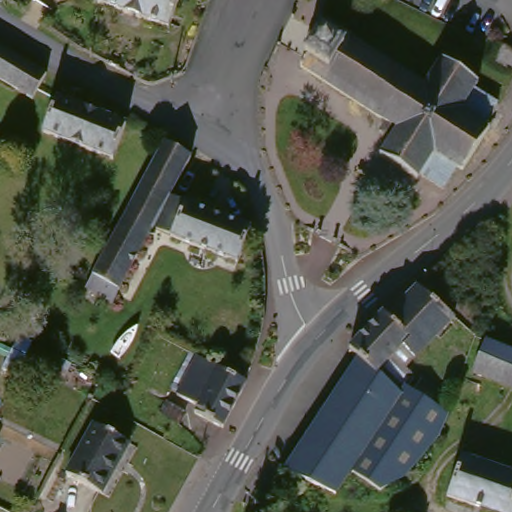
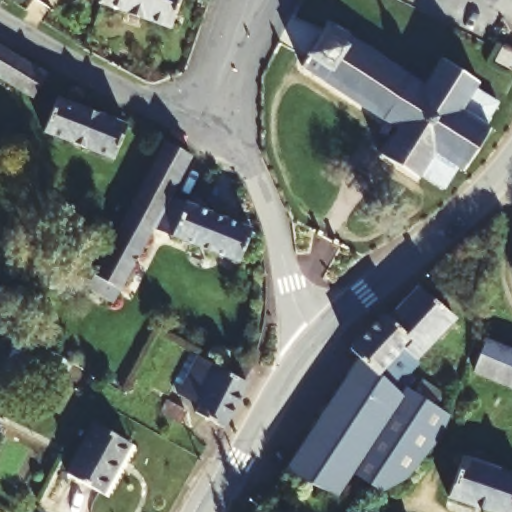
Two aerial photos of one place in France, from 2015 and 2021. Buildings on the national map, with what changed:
unchanged [(179,25),(116,0),(189,0),(179,25)]
unchanged [(433,74),(446,51),(486,71),(480,80),(504,93),(486,124),(493,128),(465,176),(463,175),(458,173),(450,191),(379,154),(384,144),(394,124),(367,109),(361,119),(342,109),(352,89),(305,65),(329,23),(433,74)]
unchanged [(35,96),(0,79),(0,34),(55,63),(35,96)]
unchanged [(512,51),(512,72),(493,61),(502,46),(512,51)]
unchanged [(136,117),(123,156),(118,155),(51,133),(62,97),(136,117)]
unchanged [(195,150),(174,189),(121,286),(113,303),(84,288),(169,137),(195,150)]
unchanged [(151,300),(137,295),(121,286),(174,189),(190,195),(172,230),(167,239),(181,245),(151,300)]
unchanged [(251,220),(237,256),(172,230),(190,195),(251,220)]
unchanged [(387,370),(371,360),(358,351),(393,307),(396,302),(404,295),(420,282),(430,290),(457,310),(444,329),(432,348),(411,335),(387,370)]
unchanged [(94,346),(77,374),(41,355),(29,348),(43,317),(94,346)]
unchanged [(512,348),(512,387),(485,374),(497,342),(512,348)]
unchanged [(197,416),(203,404),(186,395),(205,353),(222,361),(232,344),(257,358),(254,376),(227,430),(197,416)]
unchanged [(371,360),(387,370),(416,389),(407,403),(359,378),(371,360)]
unchanged [(343,496),(298,468),(359,378),(407,403),(357,476),(343,496)]
unchanged [(438,436),(406,481),(383,493),(357,476),(407,403),(438,436)]
unchanged [(133,440),(105,490),(69,472),(97,422),(133,440)]
unchanged [(508,512),(459,494),(474,454),(512,469),(512,512),(508,512)]

